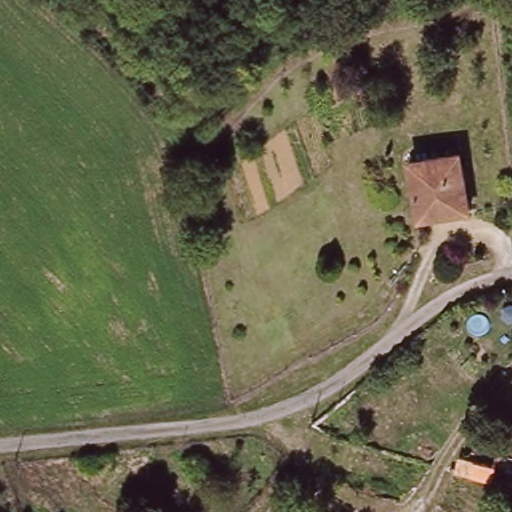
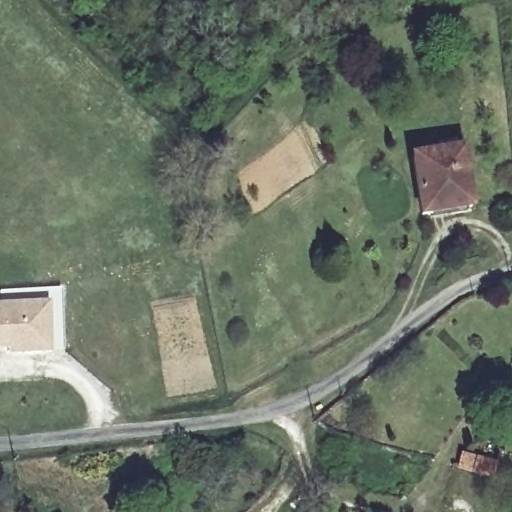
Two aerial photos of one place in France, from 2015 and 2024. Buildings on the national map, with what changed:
unchanged [(407,161),(457,153),(466,211),(416,220),(407,161)]
new [(0,348),(0,308),(46,306),(48,351),(19,352),(8,353),(7,348),(0,348)]
unchanged [(512,453),(512,482),(457,466),(461,452),(494,462),(498,450),(512,453)]

